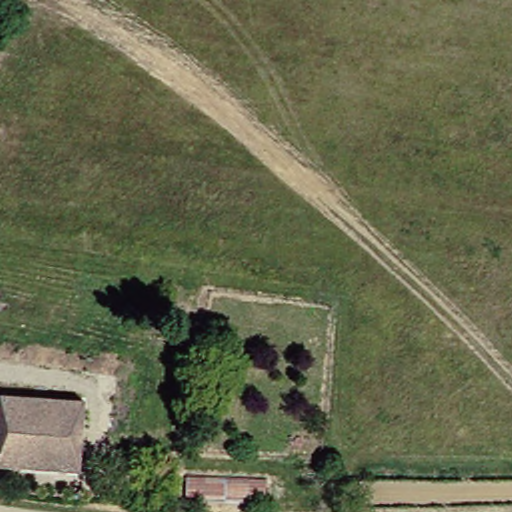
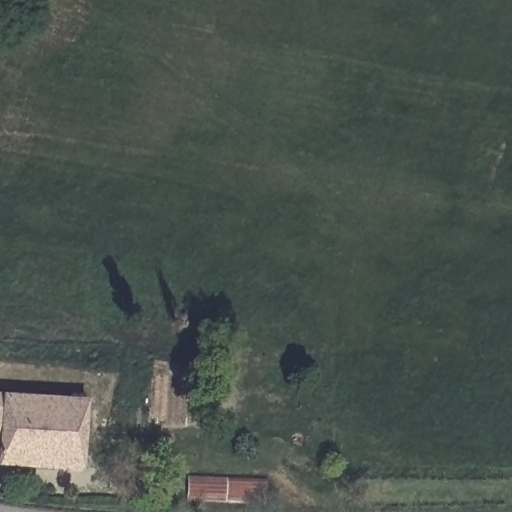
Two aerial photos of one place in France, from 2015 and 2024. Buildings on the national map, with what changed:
unchanged [(5,435),(0,435),(0,390),(9,390),(5,435)]
unchanged [(9,390),(91,397),(86,468),(4,461),(5,435),(9,390)]
unchanged [(269,497),(191,494),(192,472),(268,474),(269,497)]

